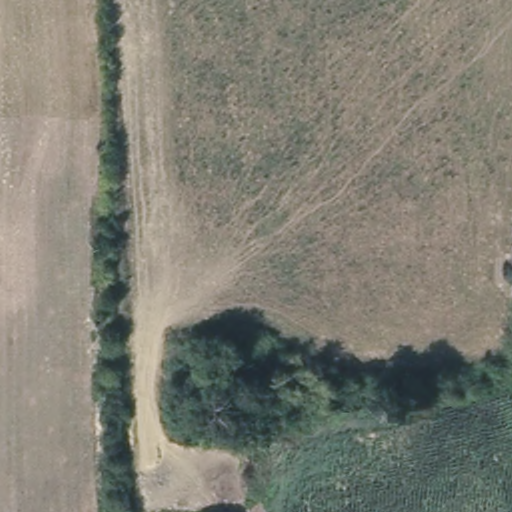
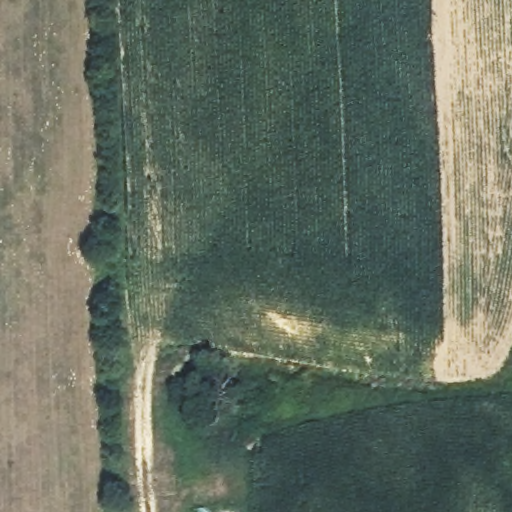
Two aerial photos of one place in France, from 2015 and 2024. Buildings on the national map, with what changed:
unchanged [(203,508),(231,512),(203,512),(203,508)]

